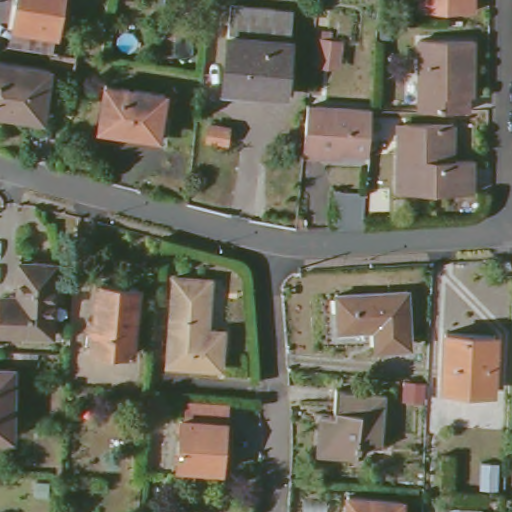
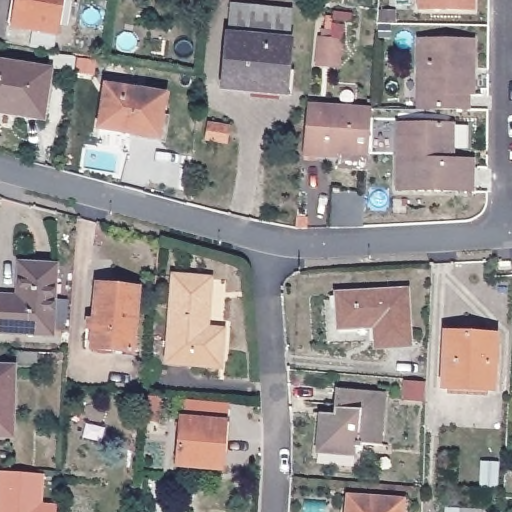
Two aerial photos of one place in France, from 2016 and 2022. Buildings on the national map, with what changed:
unchanged [(18,28),(22,3),(17,2),(18,0),(62,0),(56,34),(18,28)]
unchanged [(475,9),(420,9),(421,0),(476,0),(475,9)]
unchanged [(224,85),(231,7),(292,13),(290,41),(291,43),(286,91),(224,85)]
unchanged [(318,33),(341,35),(337,69),(313,65),(318,33)]
unchanged [(469,95),(470,110),(420,109),(420,40),(475,41),(474,69),(475,95),(469,95)]
unchanged [(44,72),(46,60),(70,64),(68,76),(44,72)]
unchanged [(0,113),(0,67),(46,75),(40,119),(0,113)]
unchanged [(135,131),(133,133),(100,128),(106,87),(165,94),(158,134),(135,131)]
unchanged [(317,155),(303,154),(307,106),(371,110),(368,153),(341,152),(341,156),(317,155)]
unchanged [(453,160),(473,160),(473,190),(398,190),(398,155),(399,124),(406,124),(453,125),(453,160)]
unchanged [(208,142),(210,125),(228,127),(226,143),(208,142)]
unchanged [(363,227),(330,228),(333,190),(365,191),(363,227)]
unchanged [(510,259),(510,270),(499,271),(498,260),(510,259)]
unchanged [(0,331),(0,308),(0,296),(18,297),(20,263),(56,265),(52,334),(0,331)]
unchanged [(168,362),(175,276),(210,279),(207,328),(222,330),(220,367),(168,362)]
unchanged [(91,349),(97,285),(138,288),(132,352),(91,349)]
unchanged [(375,327),(340,329),(337,294),(407,290),(410,340),(375,342),(375,327)]
unchanged [(445,387),(446,333),(496,335),(493,389),(445,387)]
unchanged [(13,362),(13,352),(36,353),(37,362),(13,362)]
unchanged [(0,434),(0,367),(12,367),(11,434),(0,434)]
unchanged [(406,382),(425,384),(424,400),(405,399),(406,382)]
unchanged [(320,442),(322,413),(335,414),(336,390),(386,395),(381,446),(365,445),(365,452),(358,452),(358,454),(335,452),(318,450),(320,442)]
unchanged [(185,399),(227,402),(225,422),(222,469),(177,466),(181,419),(183,419),(185,399)]
unchanged [(478,456),(500,457),(500,488),(476,486),(478,456)]
new [(45,475),(43,504),(56,506),(56,512),(0,512),(0,472),(45,475)]
unchanged [(402,501),(401,512),(347,512),(348,497),(402,501)]
unchanged [(471,510),(471,512),(450,512),(450,509),(471,510)]

